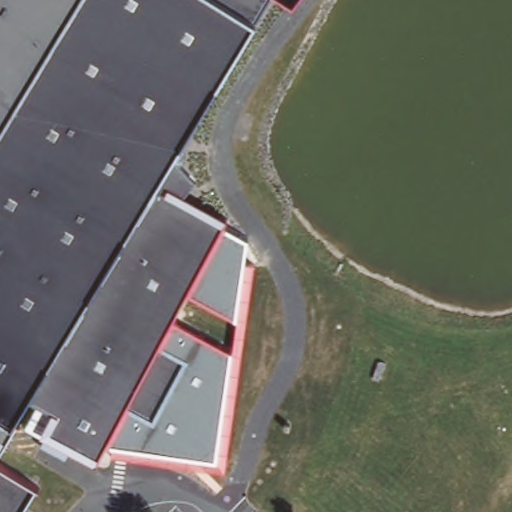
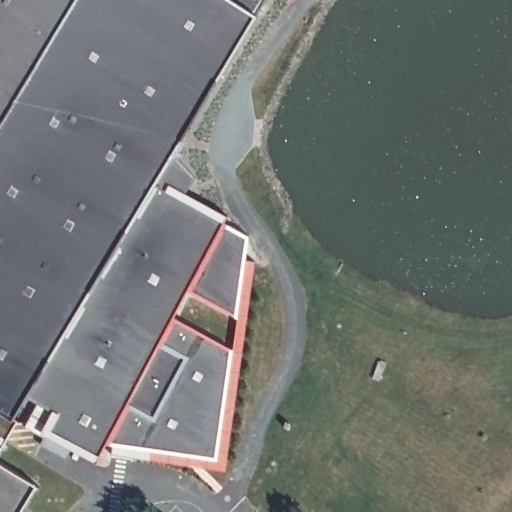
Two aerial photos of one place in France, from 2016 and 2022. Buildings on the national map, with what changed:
unchanged [(160,159),(183,183),(172,197),(215,220),(148,346),(173,359),(141,417),(117,404),(86,462),(30,437),(45,402),(22,388),(5,416),(12,421),(0,441),(0,0),(256,0),(160,159)]
unchanged [(282,1),(280,0),(282,0),(282,1)]
unchanged [(117,404),(141,417),(173,359),(148,346),(215,220),(249,237),(238,319),(192,292),(176,320),(232,350),(216,459),(98,441),(117,404)]
unchanged [(31,486),(29,485),(12,512),(0,512),(0,466),(31,485),(31,486)]

